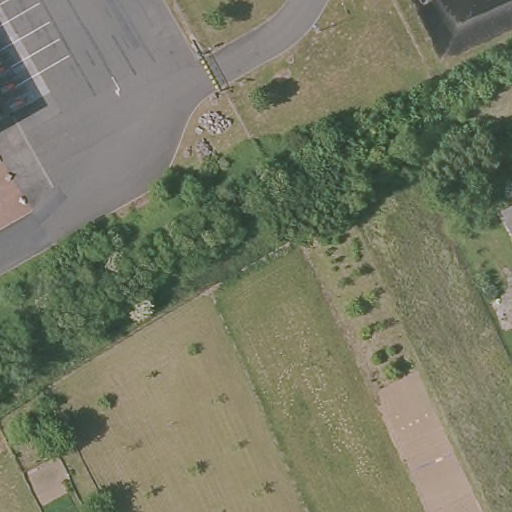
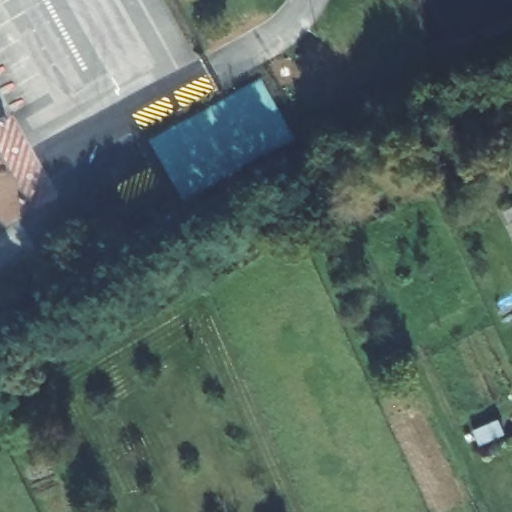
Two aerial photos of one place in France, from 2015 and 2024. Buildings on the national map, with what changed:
unchanged [(500,228),(512,223),(512,253),(500,228)]

